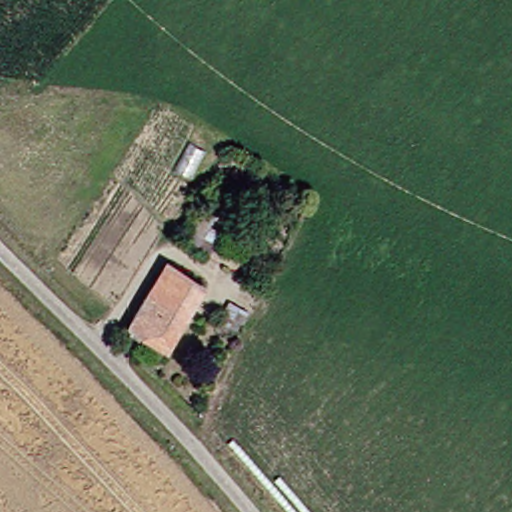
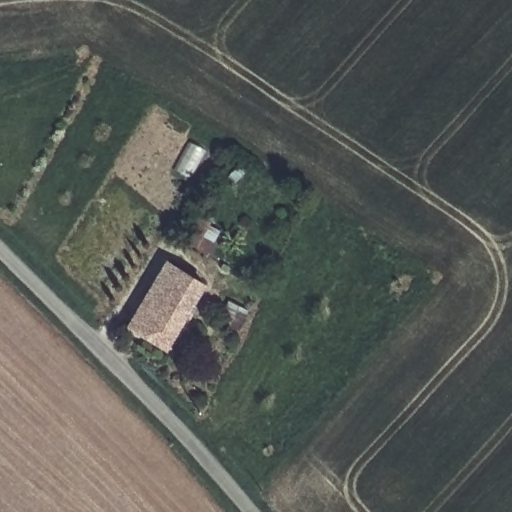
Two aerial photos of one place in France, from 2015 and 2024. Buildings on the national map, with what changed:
unchanged [(192,288),(157,349),(122,326),(158,266),(192,288)]

